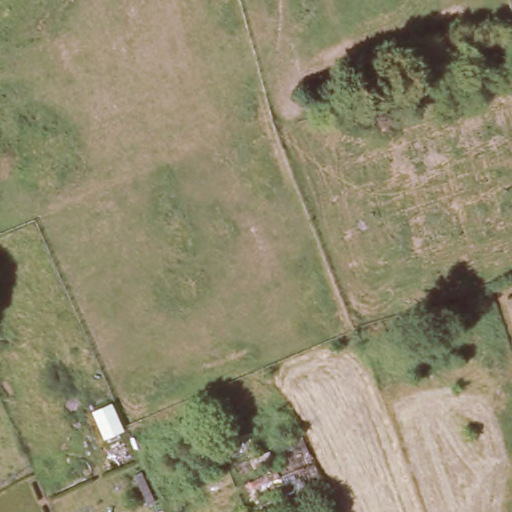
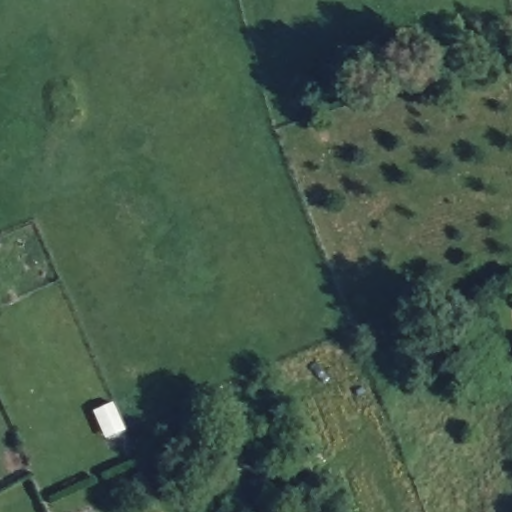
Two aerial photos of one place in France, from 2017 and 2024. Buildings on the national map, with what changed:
unchanged [(127,454),(112,460),(106,446),(120,439),(127,454)]

